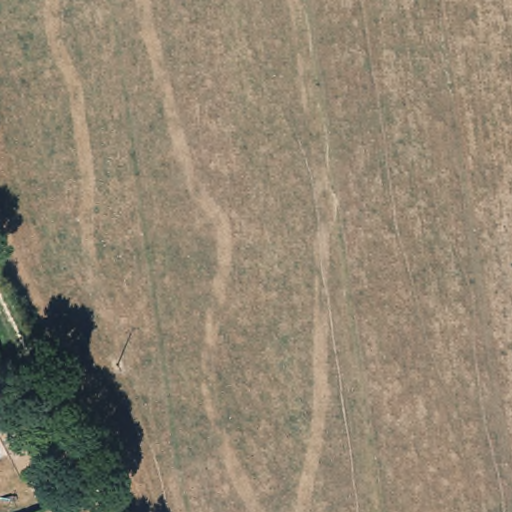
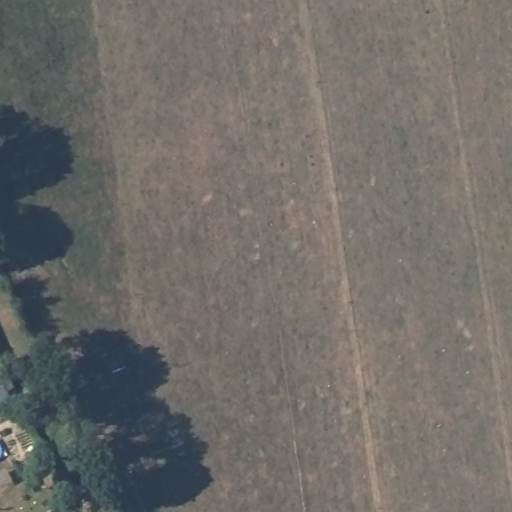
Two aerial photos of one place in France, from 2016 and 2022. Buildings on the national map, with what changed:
unchanged [(16,381),(0,388),(0,367),(8,363),(16,381)]

